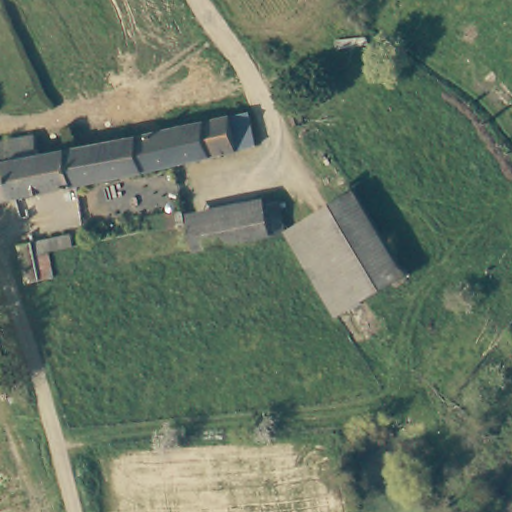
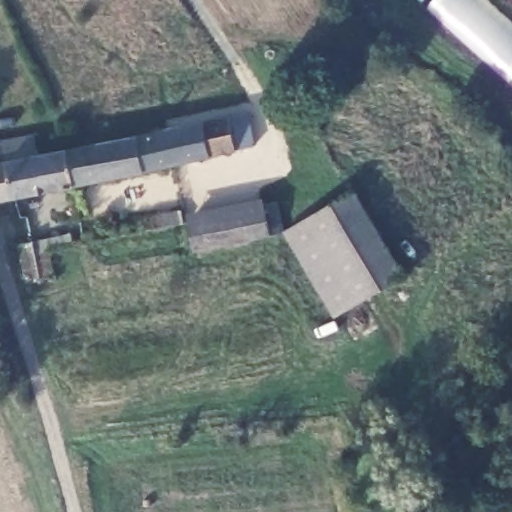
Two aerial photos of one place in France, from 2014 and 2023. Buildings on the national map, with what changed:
new [(429,7),(436,0),(483,0),(512,26),(512,83),(429,7)]
unchanged [(250,146),(182,167),(65,191),(60,157),(175,136),(245,114),(252,145),(250,146)]
unchanged [(0,146),(28,141),(30,163),(60,157),(65,191),(7,202),(0,171),(0,146)]
unchanged [(0,204),(0,171),(7,202),(0,204)]
unchanged [(332,320),(285,235),(287,233),(350,195),(400,281),(335,318),(332,320)]
unchanged [(279,235),(219,247),(192,252),(185,221),(273,203),(278,230),(279,235)]
demolished [(143,230),(141,217),(173,210),(175,224),(143,230)]
unchanged [(44,256),(46,269),(35,272),(29,245),(65,239),(68,251),(44,256)]

